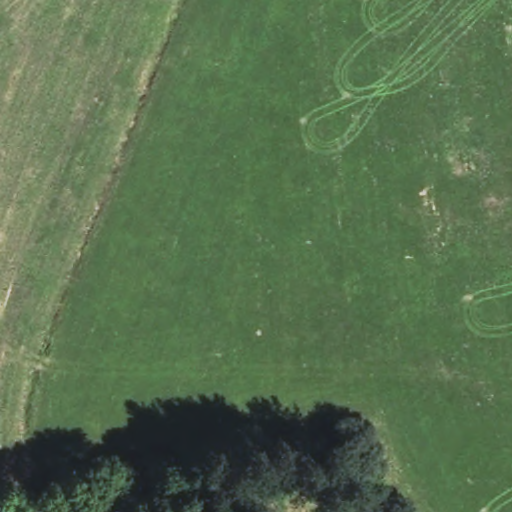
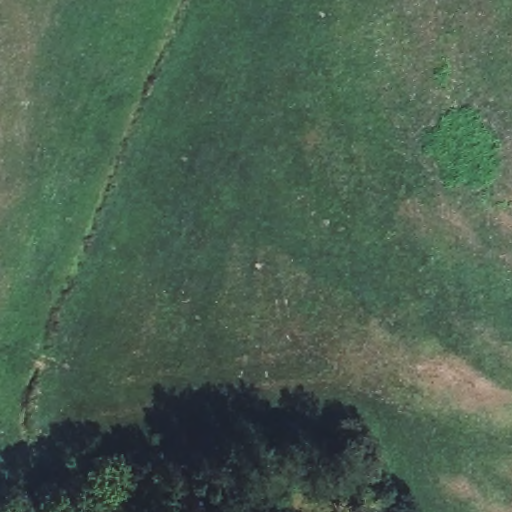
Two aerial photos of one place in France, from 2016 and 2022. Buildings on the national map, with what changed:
[]

